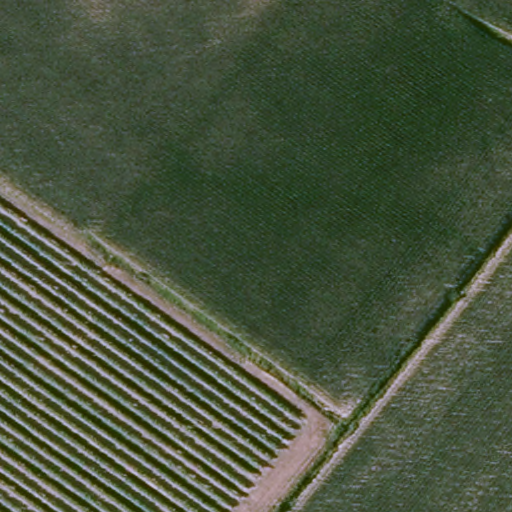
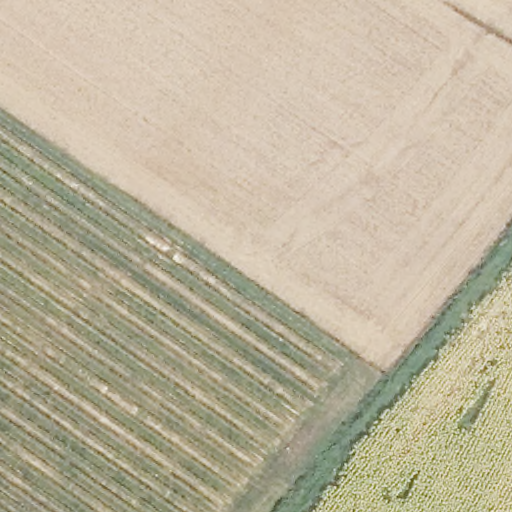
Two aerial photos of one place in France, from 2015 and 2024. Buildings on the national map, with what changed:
[]

